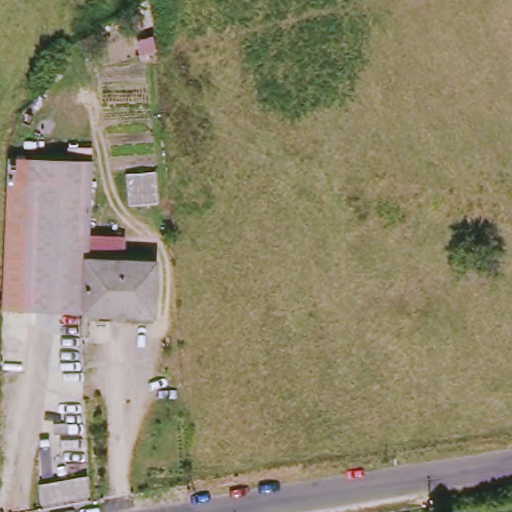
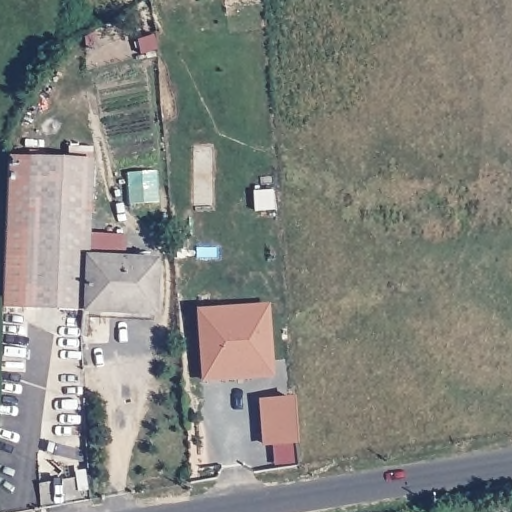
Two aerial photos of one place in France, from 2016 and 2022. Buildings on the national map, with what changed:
unchanged [(5,299),(14,158),(98,162),(92,262),(88,313),(84,313),(4,309),(5,299)]
unchanged [(92,262),(162,267),(160,318),(88,313),(92,262)]
new [(195,309),(270,304),(274,378),(203,382),(195,309)]
new [(259,401),(294,398),(298,444),(263,444),(259,401)]

